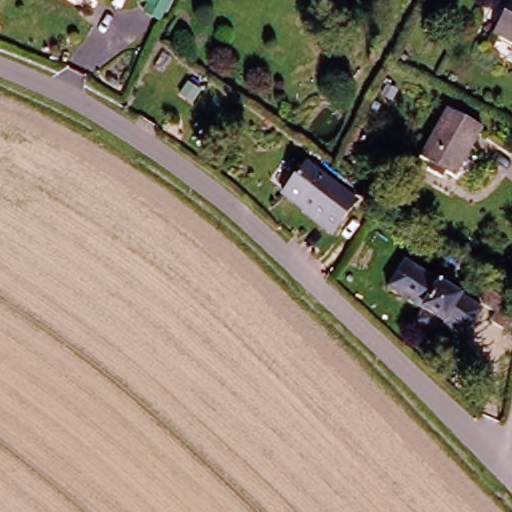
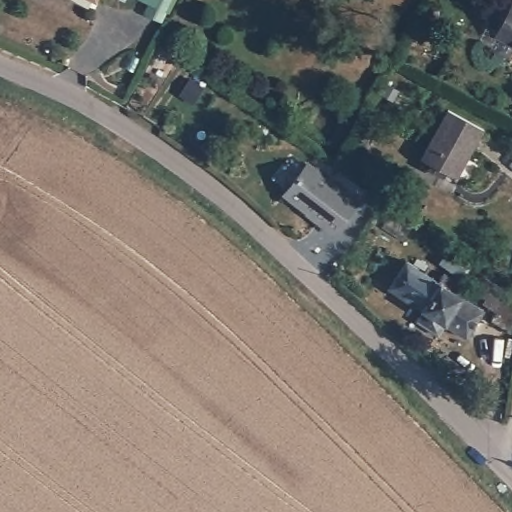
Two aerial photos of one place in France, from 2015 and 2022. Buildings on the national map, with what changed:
unchanged [(140,13),(145,4),(136,0),(163,0),(153,19),(140,13)]
unchanged [(512,6),(512,44),(495,35),(512,6)]
unchanged [(163,51),(174,58),(162,76),(152,68),(163,51)]
unchanged [(428,166),(431,160),(420,155),(446,107),(481,125),(455,173),(442,166),(438,171),(428,166)]
unchanged [(333,232),(305,214),(305,213),(282,198),(302,167),(354,199),(333,232)]
unchanged [(438,323),(430,335),(407,319),(414,308),(384,288),(401,262),(432,282),(438,274),(447,280),(442,289),(475,310),(458,336),(438,323)]
unchanged [(487,319),(492,312),(478,303),(480,300),(467,290),(478,275),(512,301),(512,313),(500,329),(487,319)]

